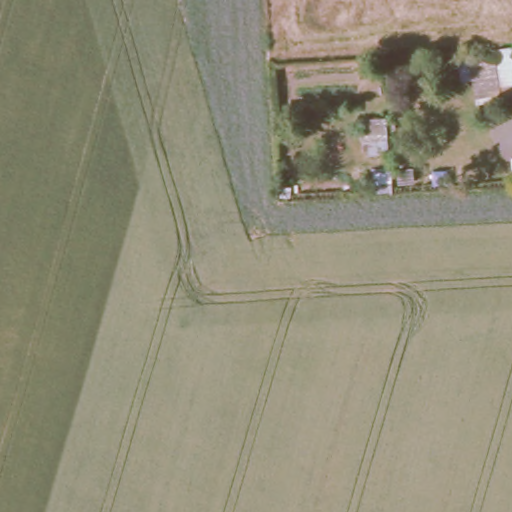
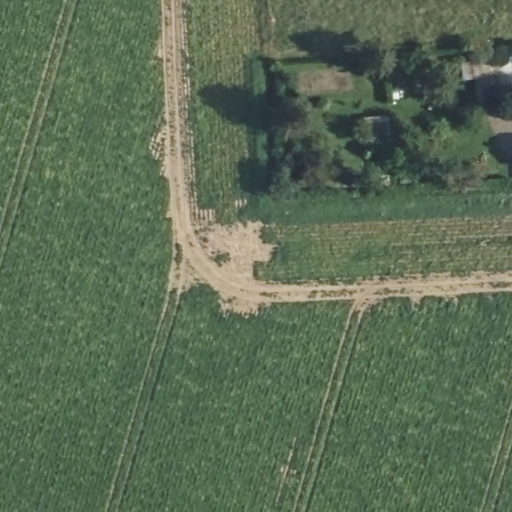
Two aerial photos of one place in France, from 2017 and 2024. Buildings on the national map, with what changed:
unchanged [(512,69),(512,100),(478,101),(475,82),(458,83),(456,63),(494,55),(497,69),(512,69)]
unchanged [(391,114),(394,152),(366,156),(362,116),(391,114)]

